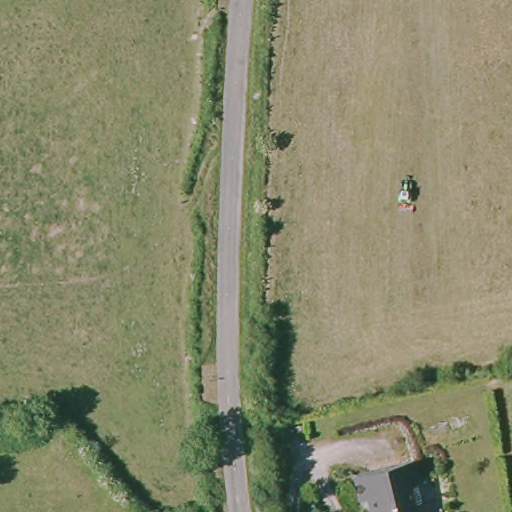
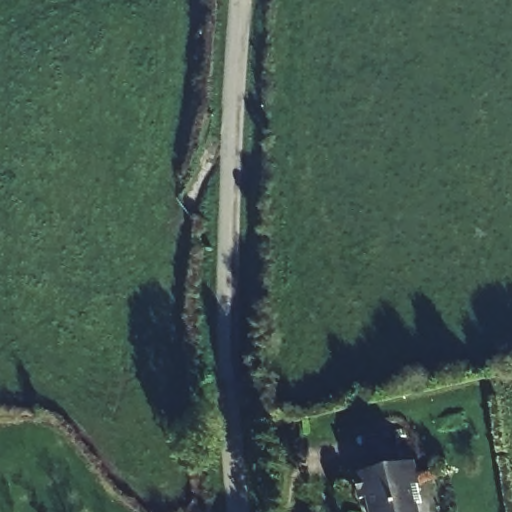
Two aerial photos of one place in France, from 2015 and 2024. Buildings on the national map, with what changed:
unchanged [(408,461),(419,504),(411,506),(413,512),(366,512),(362,497),(356,499),(350,476),(408,461)]

